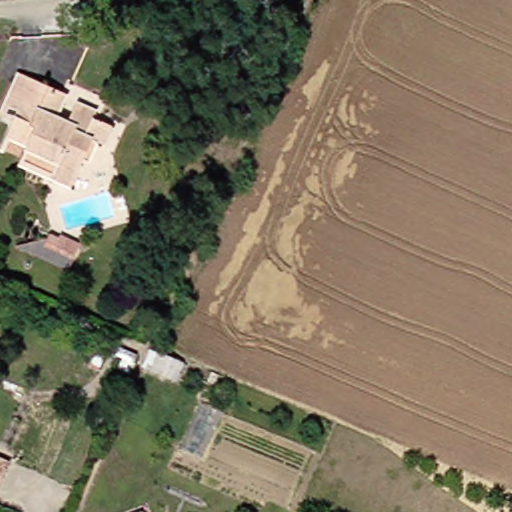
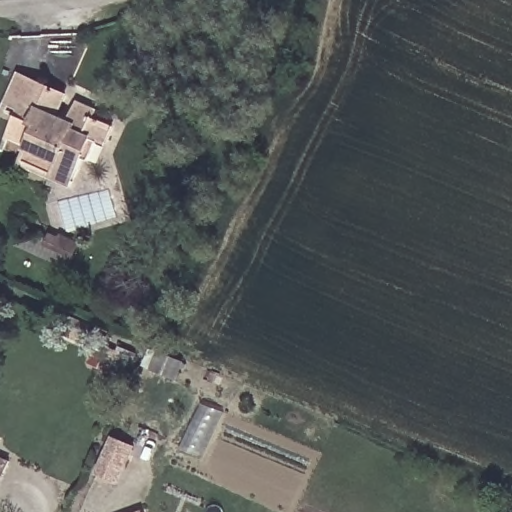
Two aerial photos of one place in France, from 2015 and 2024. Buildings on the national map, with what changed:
unchanged [(15,138),(25,115),(9,108),(23,76),(48,88),(70,98),(63,112),(78,118),(80,113),(82,109),(103,118),(101,122),(120,131),(111,151),(96,145),(76,192),(54,182),(23,168),(33,146),(15,138)]
unchanged [(11,246),(21,223),(71,245),(61,268),(11,246)]
new [(111,439),(131,448),(116,482),(96,473),(111,439)]
unchanged [(0,466),(0,458),(3,460),(0,466)]

